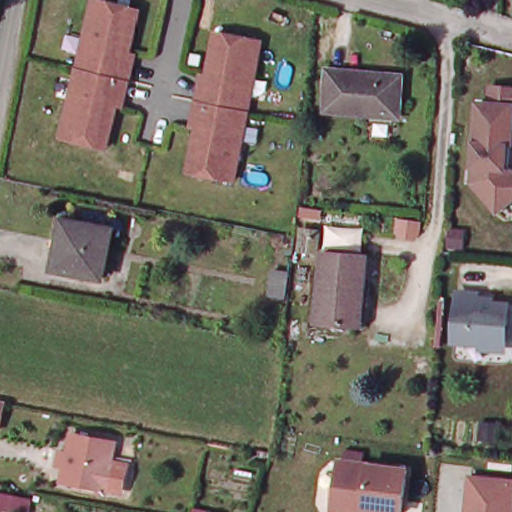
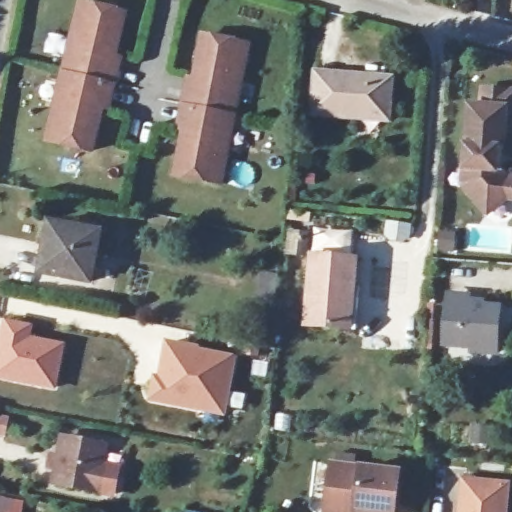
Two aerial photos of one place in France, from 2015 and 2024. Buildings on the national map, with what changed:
unchanged [(115,52),(95,47),(70,42),(80,0),(83,0),(125,11),(115,52)]
unchanged [(241,80),(218,74),(196,69),(203,34),(249,43),(241,80)]
unchanged [(102,105),(91,148),(47,137),(70,42),(95,47),(115,52),(115,54),(121,55),(118,65),(110,97),(108,107),(102,105)]
unchanged [(175,173),(184,129),(178,128),(180,118),(187,86),(189,76),(195,77),(196,69),(218,74),(241,80),(221,182),(175,173)]
unchanged [(385,119),(311,110),(316,71),(390,80),(385,119)]
unchanged [(490,209),(465,180),(467,163),(472,100),(484,101),(485,84),(512,86),(512,104),(509,104),(505,144),(500,144),(498,165),(506,165),(506,170),(511,175),(512,175),(512,194),(509,194),(490,209)]
unchanged [(82,280),(44,271),(48,256),(40,254),(47,224),(92,235),(82,280)]
unchanged [(355,322),(344,321),(305,318),(310,248),(354,251),(353,275),(358,276),(355,322)]
unchanged [(268,299),(254,298),(256,272),(270,273),(268,299)]
unchanged [(468,297),(467,306),(500,308),(499,328),(496,328),(494,347),(446,343),(451,295),(468,297)]
new [(2,317),(34,323),(31,335),(66,343),(55,392),(0,380),(0,326),(2,317)]
new [(151,372),(156,373),(164,338),(238,355),(232,391),(247,394),(243,411),(229,408),(226,418),(157,405),(145,401),(151,372)]
unchanged [(100,493),(93,492),(52,483),(61,439),(103,448),(97,473),(104,475),(100,493)]
unchanged [(403,470),(398,512),(325,512),(330,462),(361,465),(403,470)]
unchanged [(507,512),(459,512),(463,479),(510,483),(507,512)]

